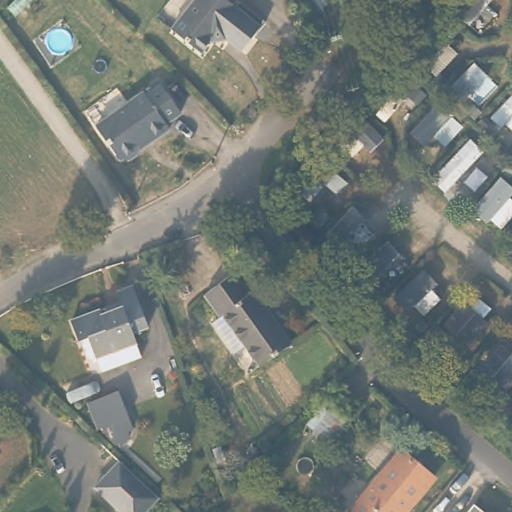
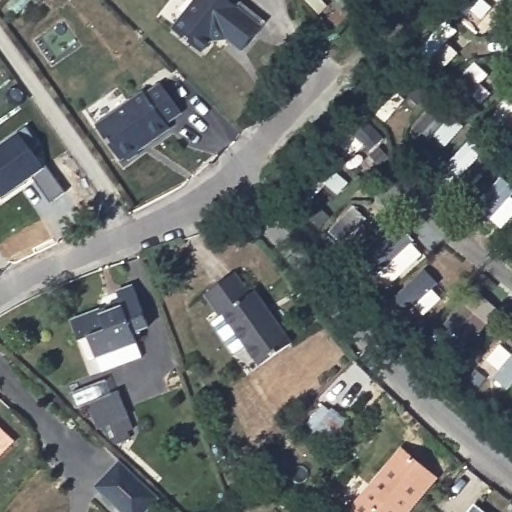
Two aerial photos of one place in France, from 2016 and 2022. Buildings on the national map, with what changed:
unchanged [(195,0),(228,0),(237,7),(240,2),(266,22),(255,36),(254,36),(242,51),(225,37),(212,39),(202,52),(172,29),(195,0)]
unchanged [(152,141),(151,139),(139,147),(138,153),(129,160),(123,159),(121,160),(96,126),(144,92),(146,95),(161,84),(181,113),(166,123),(170,128),(152,141)]
new [(65,191),(51,201),(33,176),(3,196),(0,193),(0,143),(17,131),(26,126),(38,143),(30,148),(43,165),(45,163),(65,191)]
unchanged [(209,320),(221,312),(205,289),(235,268),(250,289),(255,286),(292,338),(257,363),(243,343),(232,351),(209,320)]
unchanged [(82,367),(77,353),(69,333),(59,336),(51,316),(81,305),(83,310),(102,303),(96,287),(113,281),(128,322),(113,328),(116,338),(121,352),(82,367)]
unchanged [(110,438),(103,428),(99,429),(88,403),(118,391),(129,417),(134,428),(110,438)]
unchanged [(327,444),(313,432),(331,408),(347,419),(327,444)]
unchanged [(367,512),(359,506),(411,444),(446,473),(413,512),(367,512)]
unchanged [(145,512),(121,512),(99,491),(94,487),(106,474),(120,460),(159,497),(145,512)]
unchanged [(474,506),(481,512),(468,512),(471,509),(474,506)]

